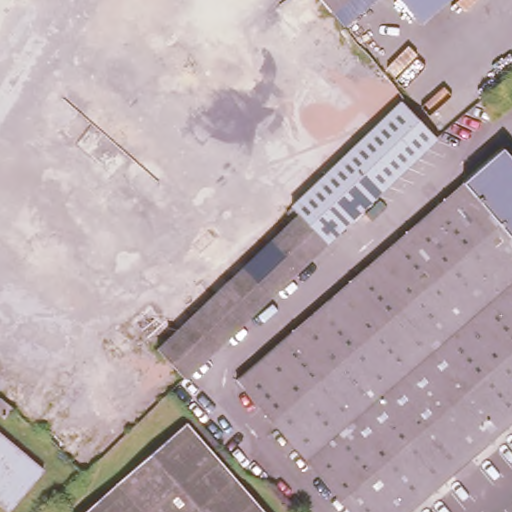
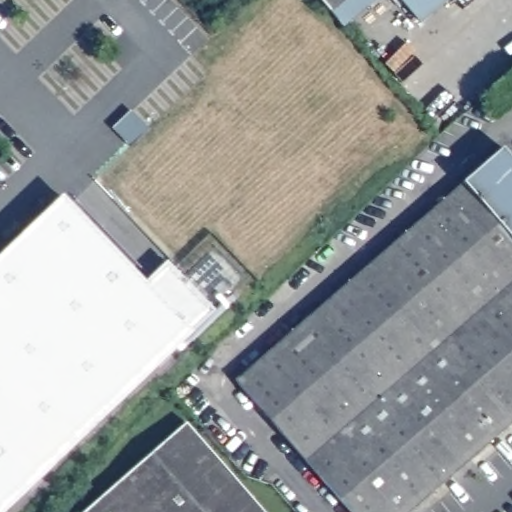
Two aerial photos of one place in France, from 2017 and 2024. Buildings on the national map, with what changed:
unchanged [(321,0),(370,0),(342,25),(321,0)]
unchanged [(400,0),(446,0),(420,23),(400,0)]
demolished [(144,355),(299,206),(293,199),(405,96),(439,133),(181,376),(171,386),(144,355)]
unchanged [(512,163),(512,419),(403,512),(371,512),(245,364),(499,147),(512,163)]
new [(152,294),(175,272),(214,310),(4,512),(0,512),(0,259),(62,199),(152,294)]
unchanged [(189,415),(272,512),(77,512),(189,415)]
demolished [(0,501),(0,429),(40,464),(5,505),(0,501)]

